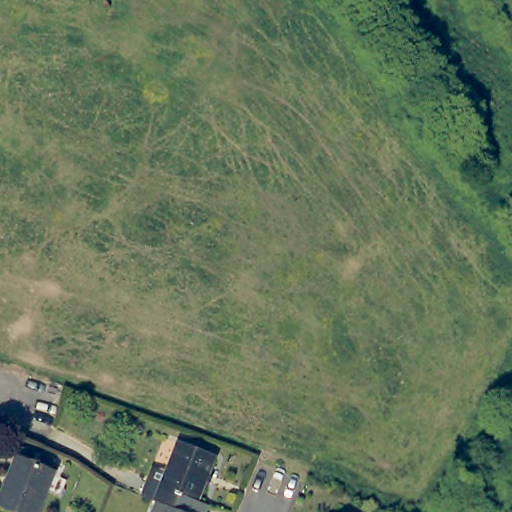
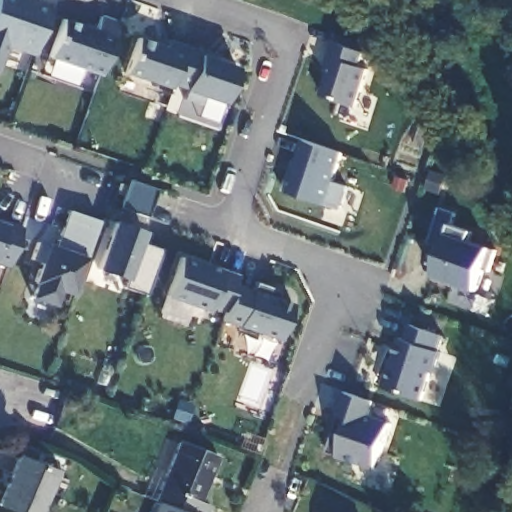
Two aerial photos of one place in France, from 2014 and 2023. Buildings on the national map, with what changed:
new [(34,57),(7,47),(0,71),(0,0),(53,0),(34,57)]
new [(62,18),(96,30),(101,16),(119,22),(100,75),(50,58),(62,18)]
new [(137,36),(166,48),(169,39),(215,56),(214,60),(236,67),(222,103),(205,97),(201,105),(182,98),(185,91),(186,88),(171,83),(170,89),(125,74),(137,36)]
new [(330,63),(335,42),(368,52),(364,68),(370,69),(357,107),(320,95),(330,63)]
new [(305,139),(344,152),(334,182),(348,187),(340,210),(285,191),(305,139)]
new [(129,180),(156,190),(147,218),(119,208),(129,180)]
new [(452,226),(474,232),(470,240),(491,247),(496,251),(488,271),(483,268),(476,292),(435,277),(445,246),(430,242),(443,209),(457,213),(452,226)]
new [(45,244),(55,248),(69,211),(97,221),(84,258),(71,296),(59,291),(54,306),(29,298),(40,262),(30,259),(36,242),(45,244)]
new [(21,227),(7,267),(0,264),(0,219),(21,227)]
new [(114,221),(145,231),(140,243),(160,249),(145,294),(124,287),(127,280),(96,270),(114,221)]
new [(180,256),(223,270),(237,275),(234,284),(251,290),(253,283),(279,290),(276,298),(291,302),(280,341),(221,322),(225,311),(210,304),(207,311),(166,297),(180,256)]
new [(391,358),(395,359),(402,338),(407,340),(411,325),(443,335),(438,350),(442,351),(435,374),(431,372),(422,399),(383,387),(391,358)]
new [(376,402),(371,415),(392,422),(376,470),(327,452),(330,443),(333,444),(343,415),(336,412),(345,391),(376,402)]
unchanged [(215,462),(199,508),(207,512),(182,512),(161,503),(156,501),(176,446),(215,462)]
unchanged [(7,512),(0,510),(0,501),(15,460),(17,461),(20,452),(54,465),(50,473),(55,475),(41,512),(7,512)]
unchanged [(182,512),(158,512),(161,503),(182,512)]

